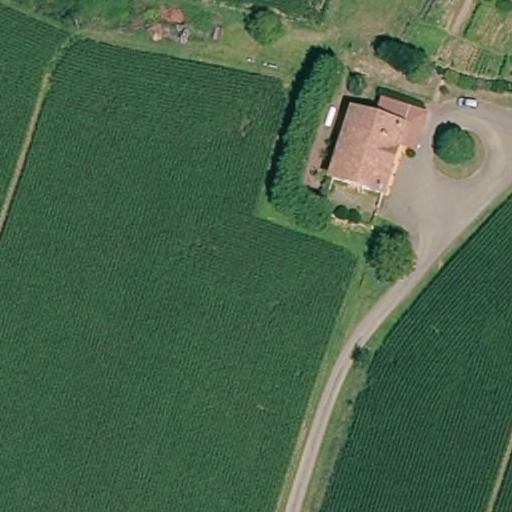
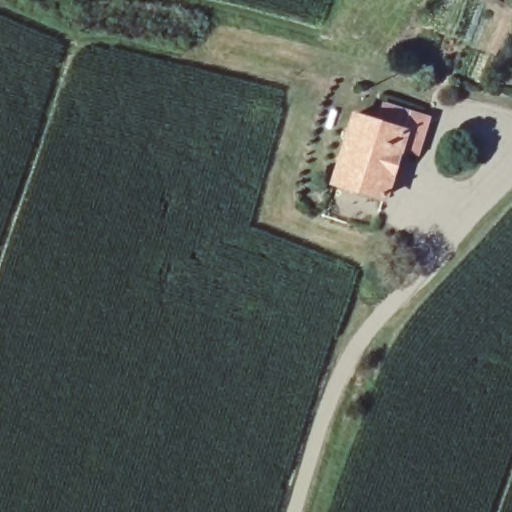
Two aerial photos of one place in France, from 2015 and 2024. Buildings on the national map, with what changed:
unchanged [(417,149),(400,143),(405,127),(379,119),(385,101),(428,116),(417,149)]
unchanged [(405,127),(400,143),(384,192),(332,176),(352,111),(379,119),(405,127)]

